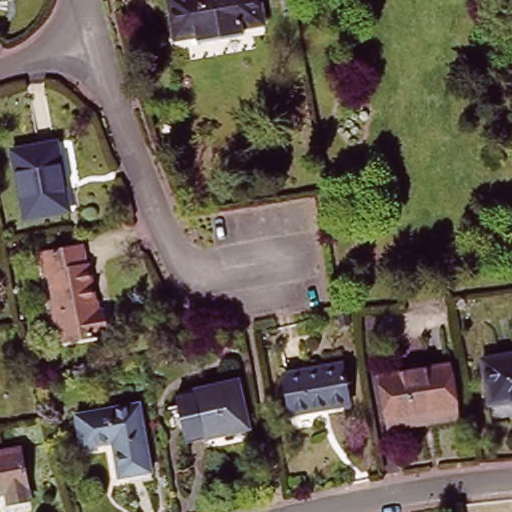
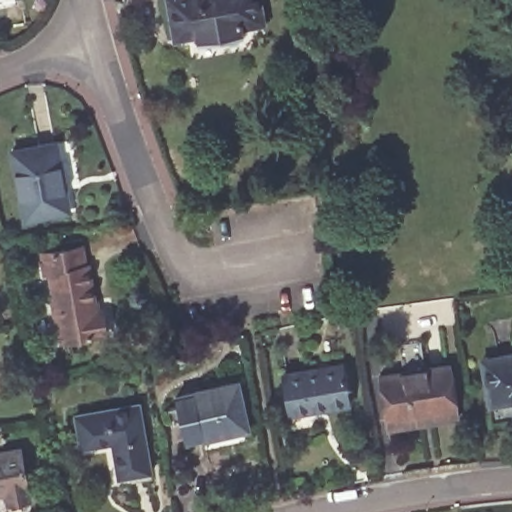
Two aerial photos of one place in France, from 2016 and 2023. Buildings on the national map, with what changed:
unchanged [(174,41),(168,0),(260,0),(265,25),(243,29),(246,35),(198,44),(197,38),(174,41)]
unchanged [(14,152),(58,144),(69,211),(26,221),(14,152)]
unchanged [(58,322),(56,322),(52,303),(54,302),(49,275),(44,275),(40,255),(83,247),(86,266),(88,266),(98,313),(103,312),(108,334),(63,342),(58,322)]
unchanged [(490,406),(482,360),(512,355),(512,403),(490,406)]
unchanged [(388,423),(380,377),(449,365),(459,419),(435,423),(389,430),(388,423)]
unchanged [(284,380),(342,370),(350,411),(293,421),(284,380)]
unchanged [(236,390),(244,435),(183,446),(175,401),(236,390)]
unchanged [(118,444),(88,449),(81,416),(144,405),(157,473),(124,479),(118,444)]
unchanged [(0,497),(0,453),(21,450),(31,501),(8,505),(6,495),(0,497)]

